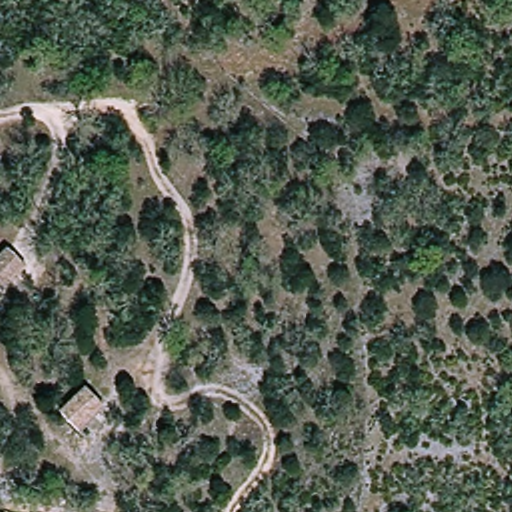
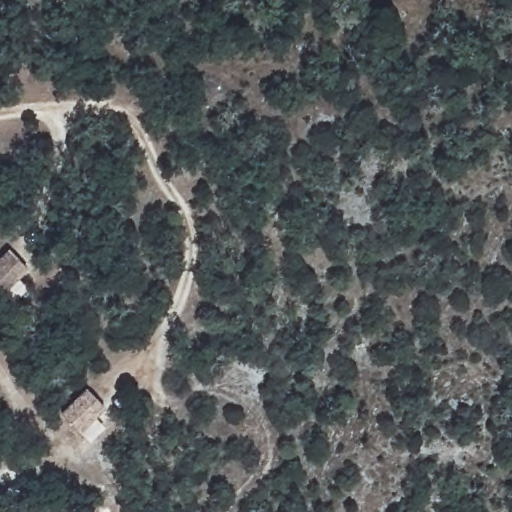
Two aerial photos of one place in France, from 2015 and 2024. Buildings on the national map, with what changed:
unchanged [(0,296),(0,256),(6,248),(29,272),(3,298),(0,296)]
unchanged [(58,416),(87,388),(102,412),(78,436),(58,416)]

